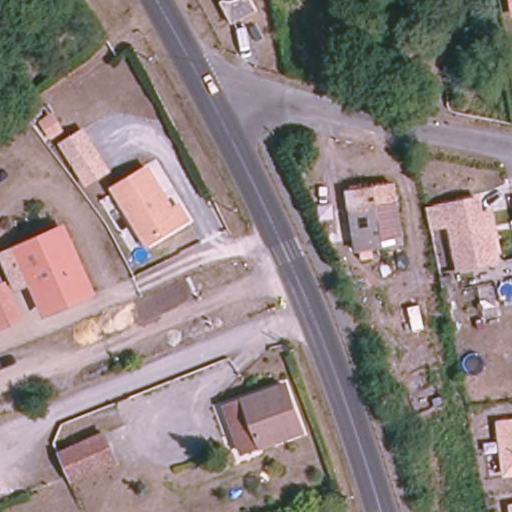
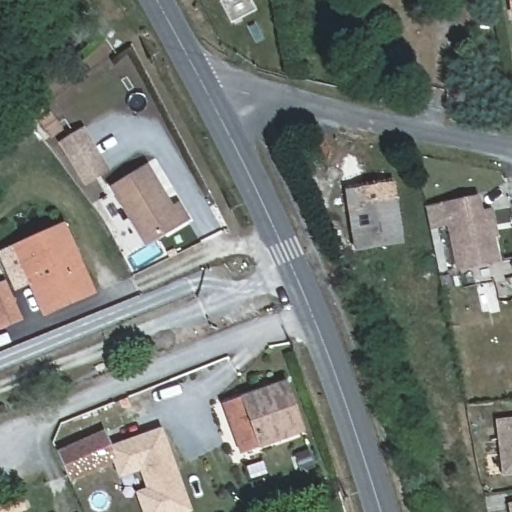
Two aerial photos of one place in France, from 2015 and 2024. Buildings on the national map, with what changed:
unchanged [(225,0),(252,0),(257,10),(234,19),(225,0)]
unchanged [(509,15),(508,0),(512,0),(512,14),(509,15)]
unchanged [(82,130),(100,158),(74,175),(58,145),(82,130)]
unchanged [(169,212),(176,208),(184,222),(144,246),(110,190),(144,170),(169,212)]
unchanged [(388,188),(400,245),(361,254),(349,196),(388,188)]
unchanged [(483,214),(488,213),(497,261),(459,268),(450,225),(429,230),(425,210),(480,199),(483,214)]
unchanged [(61,230),(89,293),(46,312),(19,249),(61,230)]
unchanged [(0,328),(0,285),(4,283),(20,320),(0,328)]
unchanged [(285,385),(303,431),(240,454),(224,405),(285,385)]
unchanged [(503,476),(498,419),(512,418),(512,476),(503,476)]
new [(119,478),(113,462),(115,461),(109,446),(163,428),(193,511),(192,512),(143,512),(135,492),(146,488),(139,471),(119,478)]
unchanged [(103,433),(115,461),(69,481),(67,476),(56,452),(103,433)]
unchanged [(511,512),(509,505),(512,504),(512,512),(511,512)]

